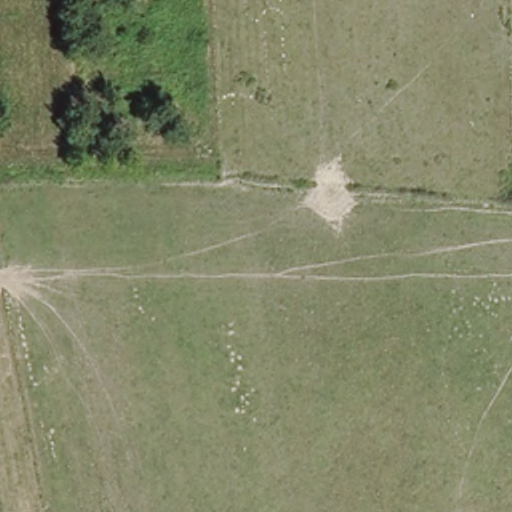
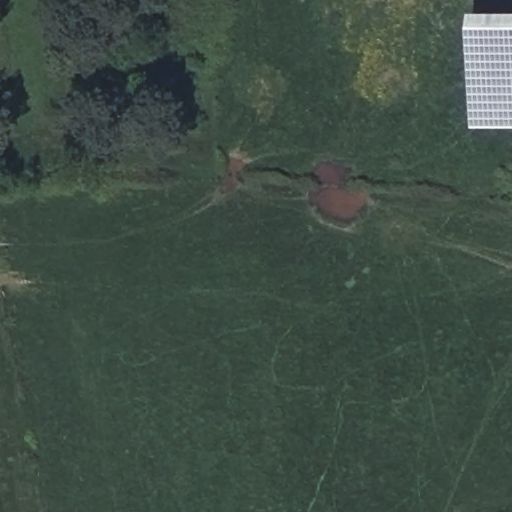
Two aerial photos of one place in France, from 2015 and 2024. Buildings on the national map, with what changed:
new [(473,128),(472,13),(512,13),(512,128),(473,128)]

